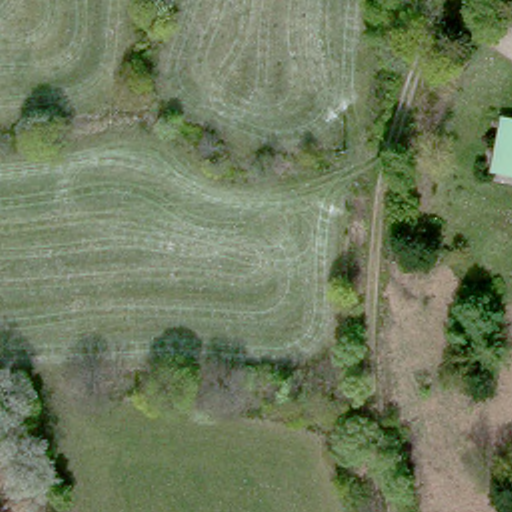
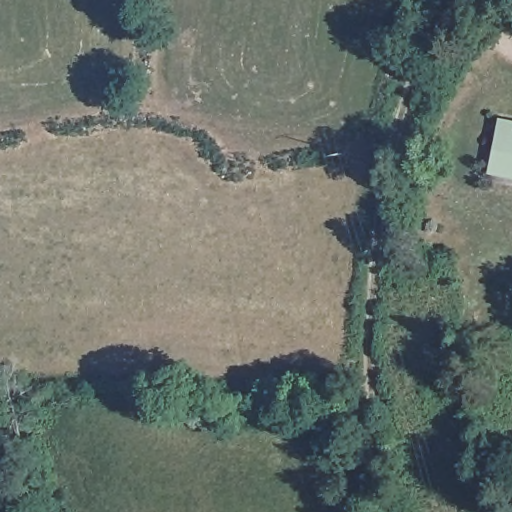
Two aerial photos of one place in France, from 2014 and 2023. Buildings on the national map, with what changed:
unchanged [(510,123),(512,124),(512,170),(498,166),(510,123)]

